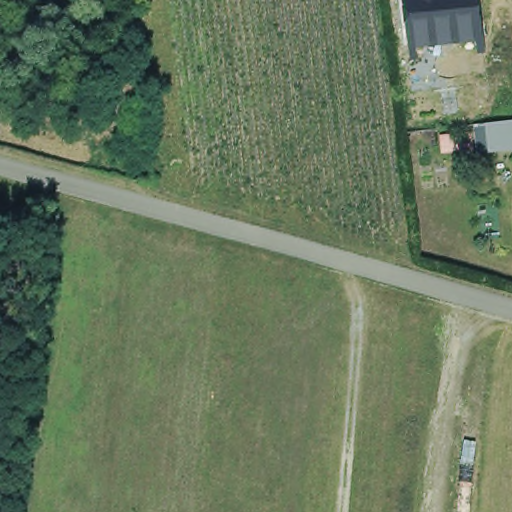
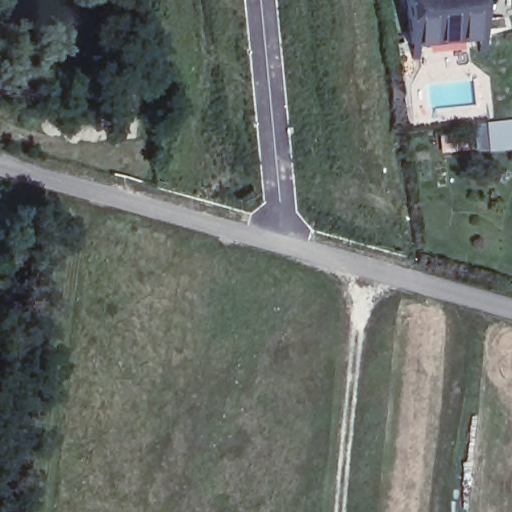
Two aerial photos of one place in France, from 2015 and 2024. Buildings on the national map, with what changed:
unchanged [(484,41),(410,49),(409,42),(406,42),(402,0),(480,0),(484,41)]
unchanged [(486,123),(512,120),(512,149),(507,150),(489,152),(478,154),(474,125),(486,123)]

